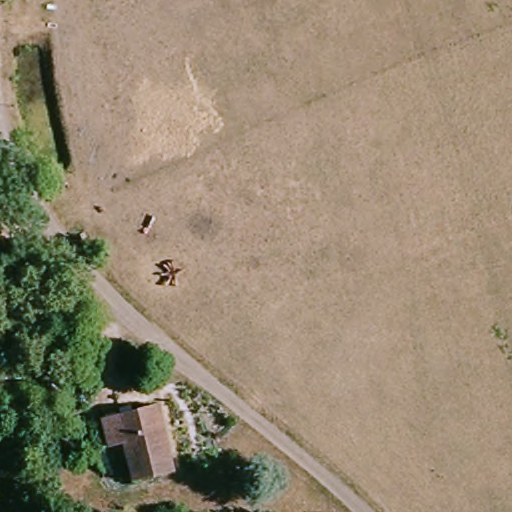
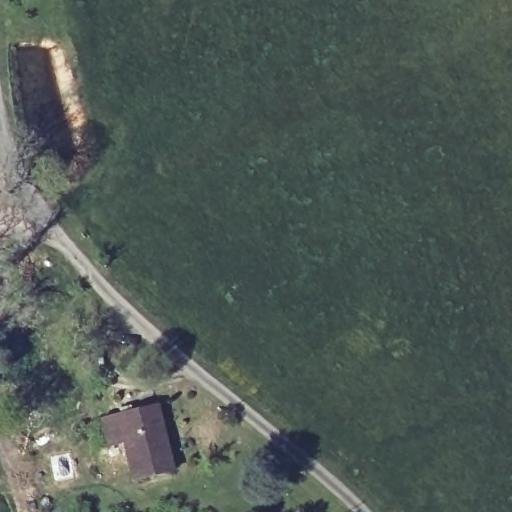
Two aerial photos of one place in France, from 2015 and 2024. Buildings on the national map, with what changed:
unchanged [(159,406),(176,476),(132,486),(122,447),(107,452),(100,422),(159,406)]

